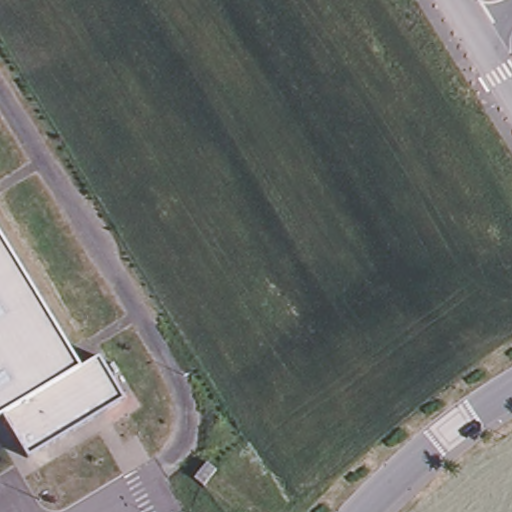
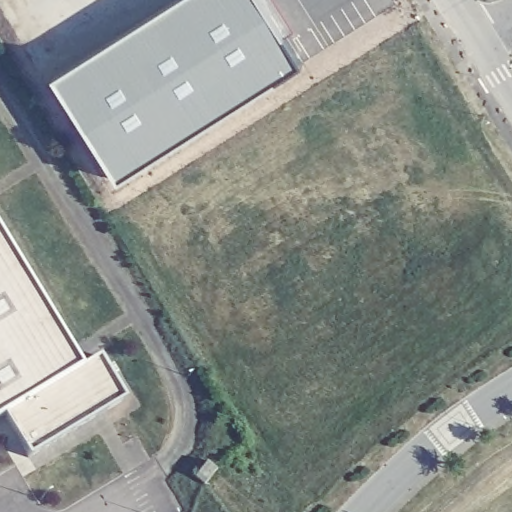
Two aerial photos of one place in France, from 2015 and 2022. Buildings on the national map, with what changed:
new [(189,0),(251,0),(297,73),(117,189),(52,89),(189,0)]
unchanged [(0,414),(0,235),(79,364),(80,365),(2,413),(0,414)]
unchanged [(80,365),(79,364),(97,353),(124,396),(27,455),(2,413),(80,365)]
unchanged [(215,471),(202,487),(193,479),(206,463),(215,471)]

